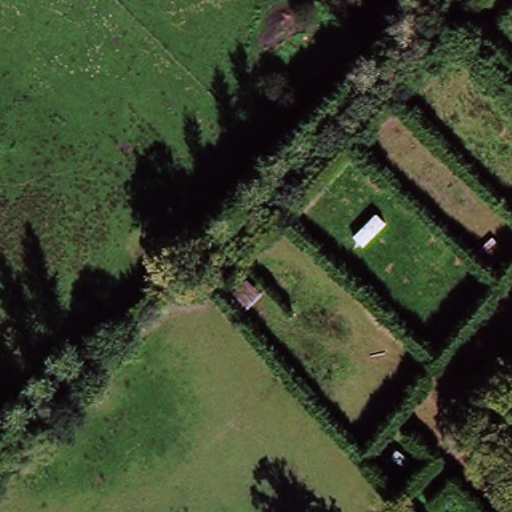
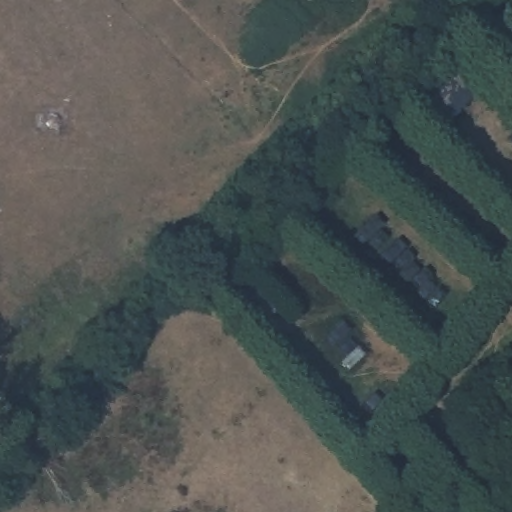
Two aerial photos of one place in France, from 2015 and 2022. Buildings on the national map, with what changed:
unchanged [(430,12),(418,0),(441,0),(430,12)]

